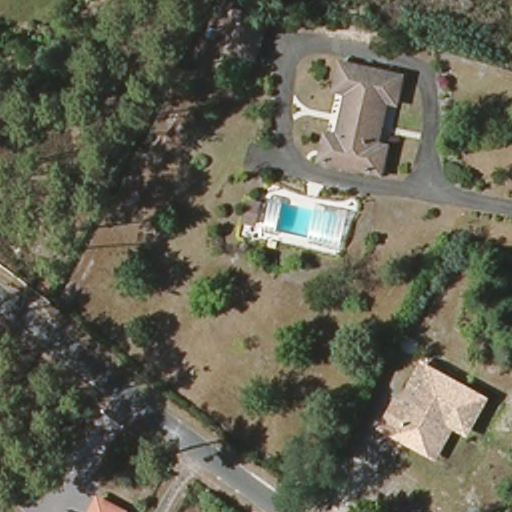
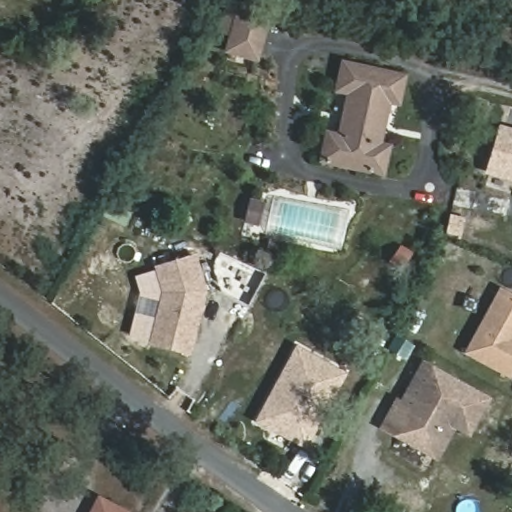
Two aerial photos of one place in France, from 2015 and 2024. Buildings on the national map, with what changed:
unchanged [(260,17),(250,56),(223,51),(233,10),(260,17)]
unchanged [(333,136),(343,139),(349,140),(358,100),(345,97),(351,70),(411,87),(405,112),(394,109),(381,152),(391,155),(385,179),(337,166),(326,162),(333,136)]
new [(504,132),(512,134),(512,180),(491,175),(504,132)]
new [(166,290),(159,266),(196,255),(206,290),(203,302),(200,301),(199,306),(202,307),(191,350),(153,341),(166,290)]
new [(504,290),(512,294),(512,374),(471,351),(504,290)]
new [(302,347),(313,352),(348,372),(309,444),(263,418),(270,404),(302,347)]
unchanged [(481,396),(462,431),(442,421),(424,456),(393,441),(399,428),(380,418),(391,397),(410,407),(430,370),(481,396)]
unchanged [(126,509),(124,512),(90,512),(100,495),(126,509)]

